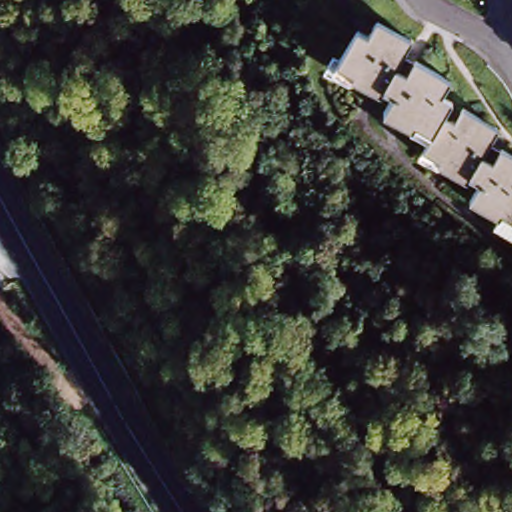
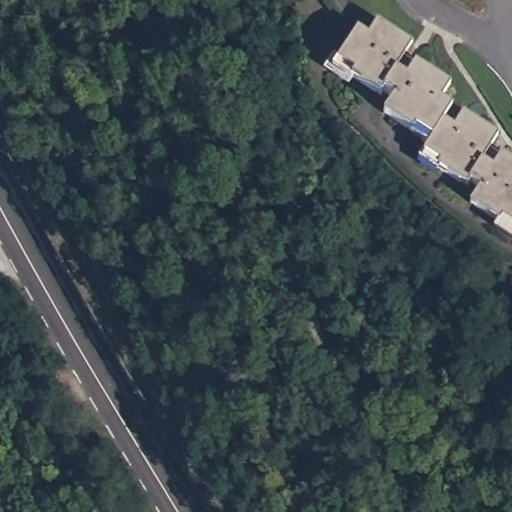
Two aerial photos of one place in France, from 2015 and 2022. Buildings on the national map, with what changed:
unchanged [(427,141),(411,131),(408,135),(380,116),(394,95),(384,89),(381,93),(353,74),(356,69),(339,58),(361,26),(371,33),(381,18),(416,41),(399,66),(409,73),(417,63),(450,85),(441,98),(450,105),(440,121),(427,141)]
unchanged [(499,219),(496,223),(467,204),(479,186),(467,178),(464,183),(435,164),(439,160),(423,149),(427,141),(440,121),(449,126),(460,111),(495,134),(483,154),(494,161),(500,152),(512,160),(512,227),(499,219)]

